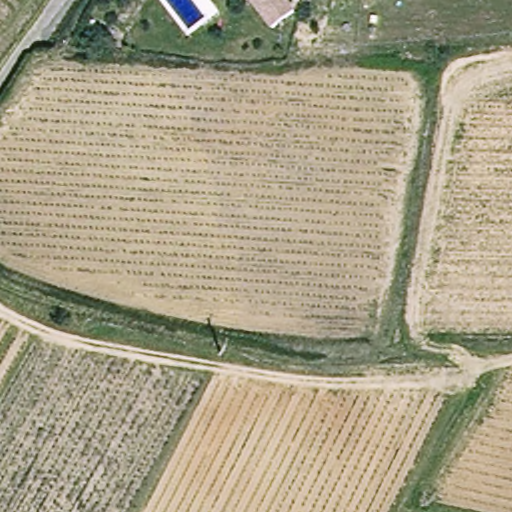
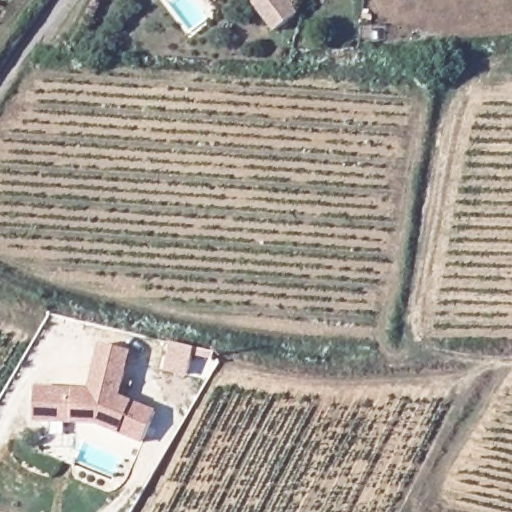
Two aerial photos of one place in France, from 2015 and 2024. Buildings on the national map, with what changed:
unchanged [(305,14),(284,31),(261,3),(262,0),(294,0),(305,14)]
new [(86,393),(90,377),(91,367),(95,346),(125,351),(121,372),(118,385),(116,399),(153,413),(141,444),(95,426),(44,424),(37,424),(31,424),(32,391),(45,391),(86,393)]

